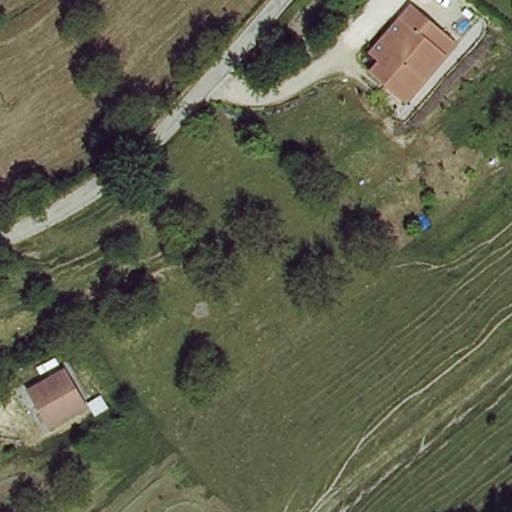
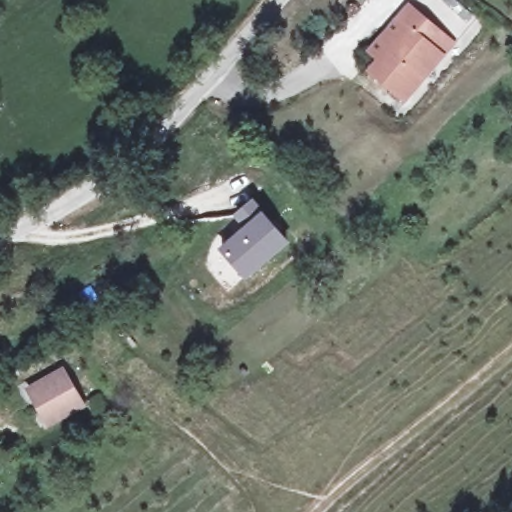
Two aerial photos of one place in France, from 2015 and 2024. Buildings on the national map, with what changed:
unchanged [(369,73),(375,65),(364,56),(396,17),(407,5),(437,34),(447,44),(437,56),(400,102),(369,73)]
new [(246,277),(224,250),(251,228),(240,215),(255,203),(288,243),(246,277)]
unchanged [(14,405),(59,381),(83,418),(43,443),(14,405)]

